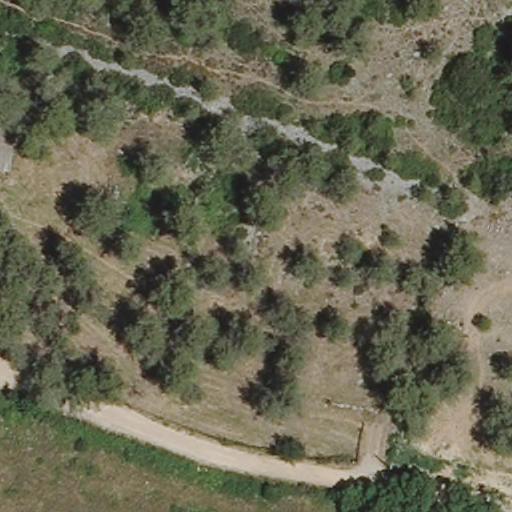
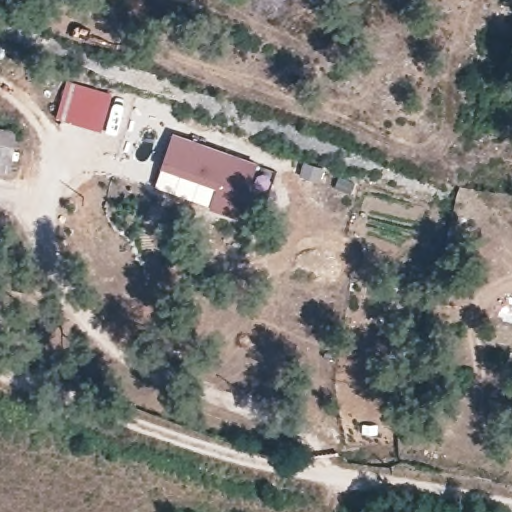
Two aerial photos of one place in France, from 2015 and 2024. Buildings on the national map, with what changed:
new [(113,94),(102,132),(56,117),(68,80),(113,94)]
unchanged [(0,128),(14,129),(10,172),(0,170),(0,128)]
new [(173,132),(258,163),(239,217),(154,187),(173,132)]

